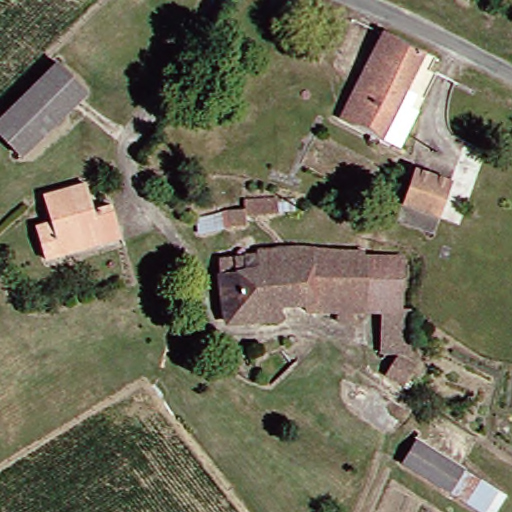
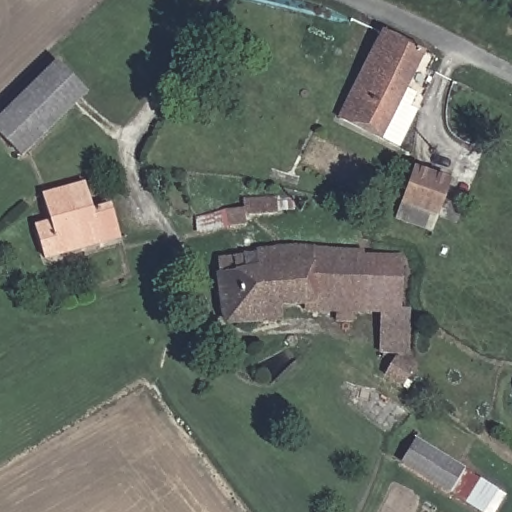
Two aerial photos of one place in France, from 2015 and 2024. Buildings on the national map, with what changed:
unchanged [(398,95),(410,107),(392,154),(330,119),(372,40),(417,61),(398,95)]
unchanged [(76,97),(13,164),(0,151),(0,107),(44,61),(76,97)]
unchanged [(72,257),(40,267),(18,216),(34,209),(28,186),(67,172),(74,193),(91,189),(108,234),(112,244),(72,257)]
unchanged [(421,234),(386,225),(397,175),(433,184),(421,234)]
unchanged [(295,221),(266,221),(266,234),(256,235),(255,215),(263,215),(263,208),(292,206),(295,221)]
unchanged [(245,327),(207,328),(207,264),(234,262),(234,274),(256,275),(254,256),(351,252),(352,261),(355,313),(295,315),(293,306),(267,307),(269,326),(245,327)]
unchanged [(392,258),(393,312),(355,313),(352,261),(392,258)]
unchanged [(406,358),(377,357),(374,321),(407,320),(406,358)]
unchanged [(373,383),(387,363),(407,376),(393,398),(373,383)]
unchanged [(457,502),(417,476),(433,455),(468,482),(457,502)]

